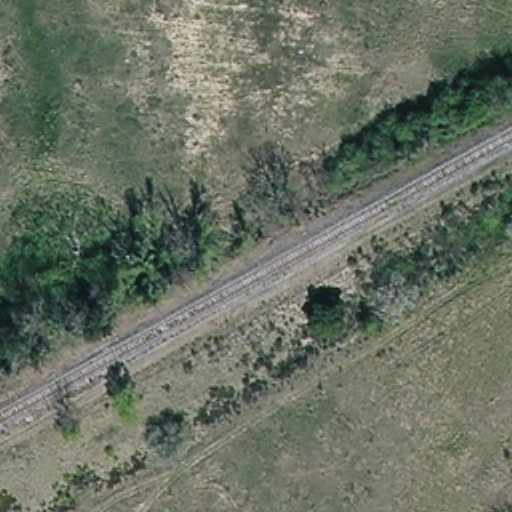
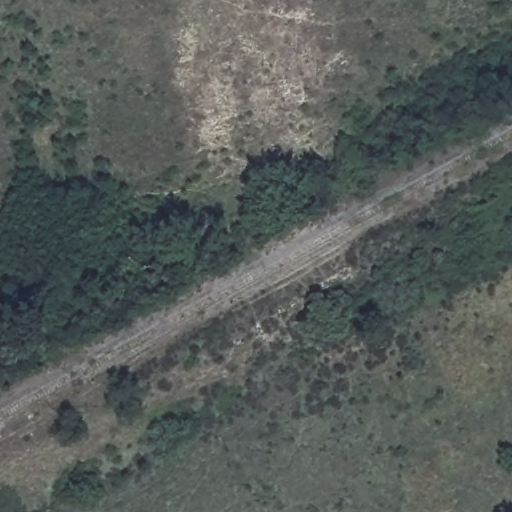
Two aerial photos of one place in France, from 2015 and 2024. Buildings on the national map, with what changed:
[]

